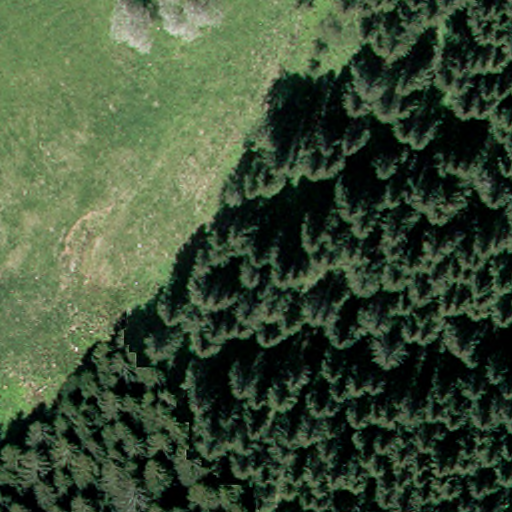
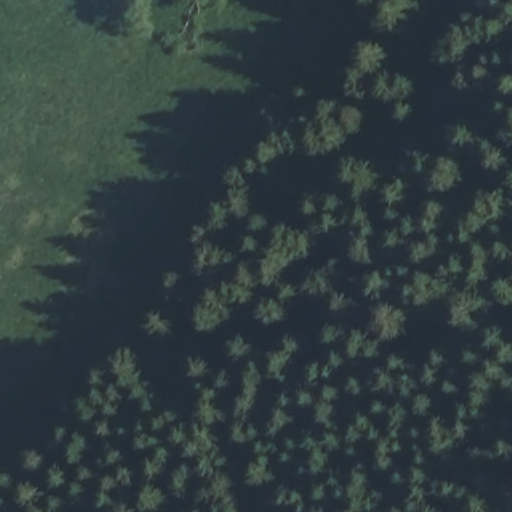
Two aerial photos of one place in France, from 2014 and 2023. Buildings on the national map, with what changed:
[]

